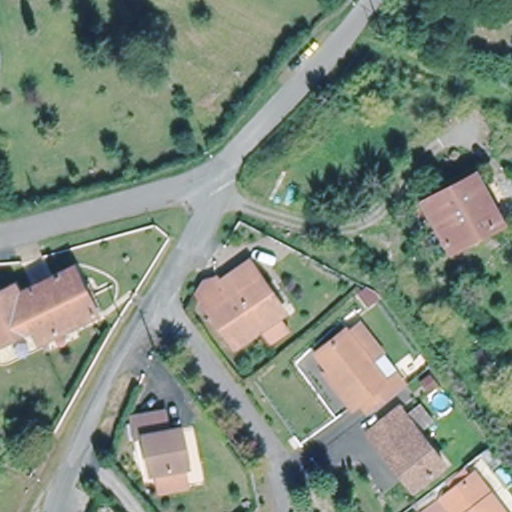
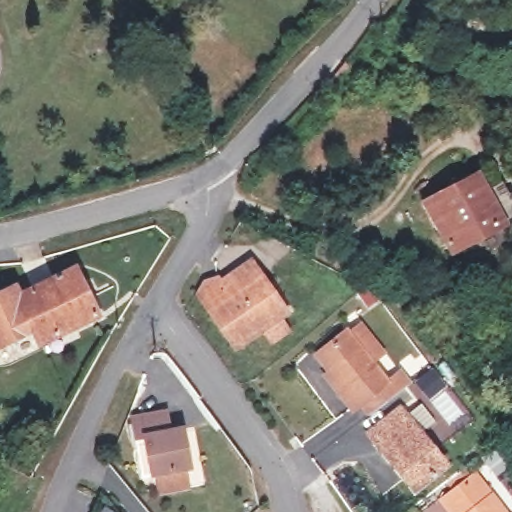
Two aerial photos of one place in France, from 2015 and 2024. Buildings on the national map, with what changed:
unchanged [(476,171),(505,222),(451,252),(423,201),(476,171)]
unchanged [(271,342),(262,329),(236,347),(201,297),(202,296),(198,290),(204,280),(217,276),(221,282),(250,262),(285,312),(279,317),(287,330),(271,342)]
unchanged [(19,297),(75,270),(97,314),(39,342),(33,329),(0,345),(0,295),(14,288),(19,297)]
unchanged [(330,372),(317,355),(347,331),(348,333),(359,325),(382,352),(371,362),(387,382),(396,375),(405,387),(370,415),(360,403),(352,410),(330,381),(325,376),(330,372)]
unchanged [(159,483),(156,470),(152,471),(144,432),(135,434),(131,413),(167,406),(171,426),(181,424),(188,463),(184,464),(187,477),(159,483)]
unchanged [(401,421),(416,408),(430,426),(415,438),(440,469),(410,493),(372,446),(365,437),(379,426),(395,413),(401,421)]
unchanged [(446,482),(465,467),(472,477),(476,474),(505,512),(453,512),(443,500),(453,492),(446,482)]

